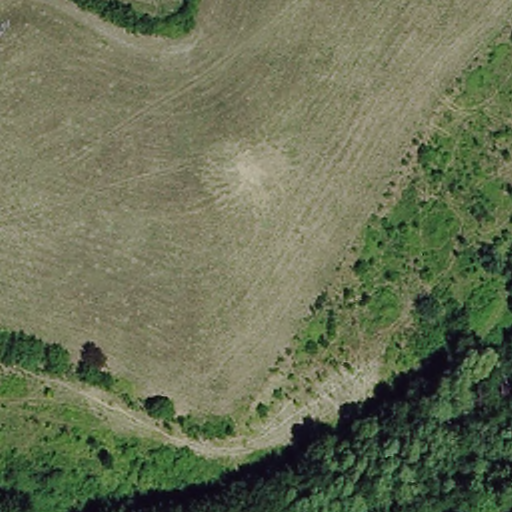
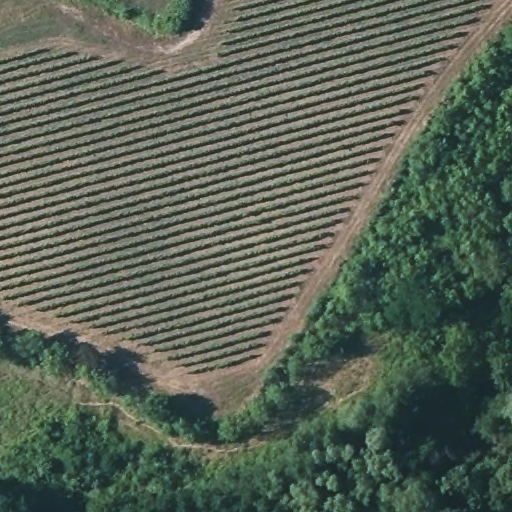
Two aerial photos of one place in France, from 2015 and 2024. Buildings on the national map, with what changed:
[]

